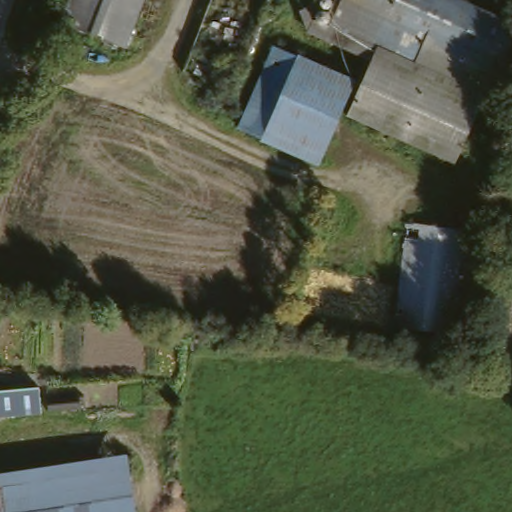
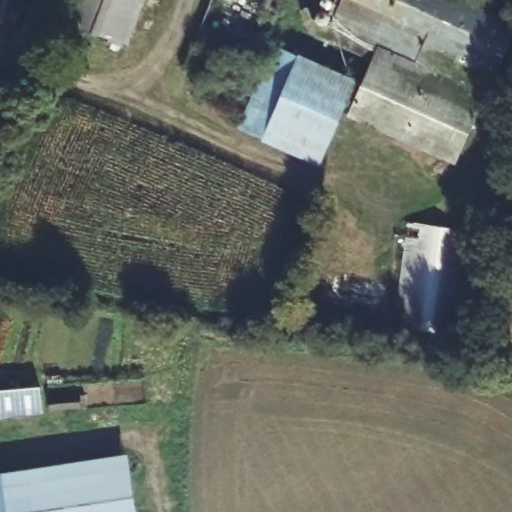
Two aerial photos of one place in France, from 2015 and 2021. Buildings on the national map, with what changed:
unchanged [(66,0),(135,0),(119,45),(58,21),(66,0)]
unchanged [(345,117),(377,50),(337,29),(347,7),(333,2),(334,0),(458,0),(512,26),(512,48),(450,171),(345,117)]
unchanged [(271,41),(297,54),(260,135),(233,121),(271,41)]
unchanged [(352,80),(315,161),(260,135),(297,54),(352,80)]
unchanged [(407,222),(473,229),(461,337),(393,331),(406,226),(407,222)]
unchanged [(40,388),(41,413),(40,413),(0,416),(0,391),(40,388)]
unchanged [(127,453),(133,512),(0,512),(0,471),(127,453)]

